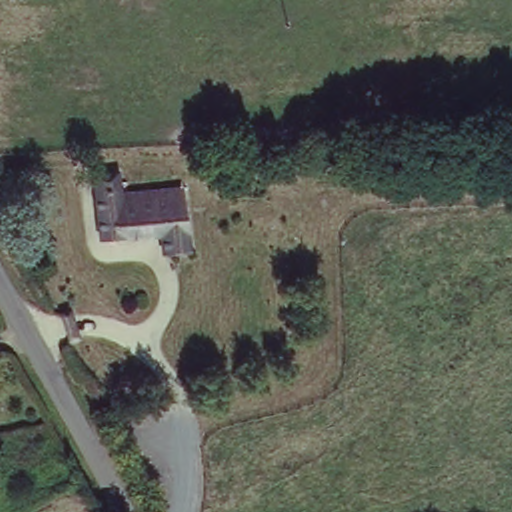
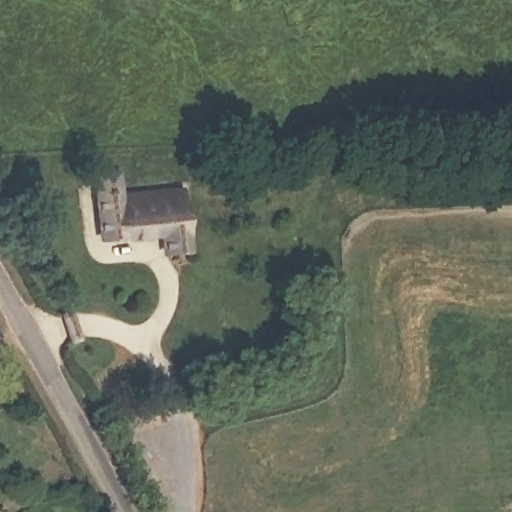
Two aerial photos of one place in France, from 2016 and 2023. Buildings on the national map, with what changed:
unchanged [(170,253),(165,229),(102,239),(92,176),(113,173),(116,196),(181,187),(188,225),(191,250),(170,253)]

